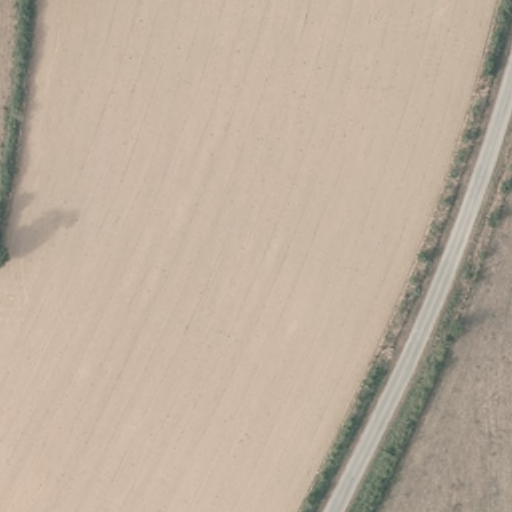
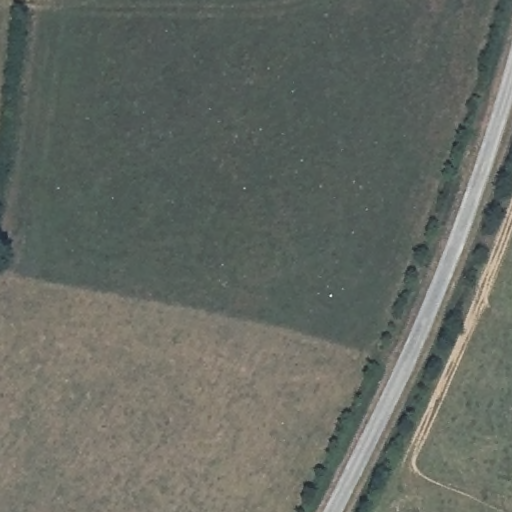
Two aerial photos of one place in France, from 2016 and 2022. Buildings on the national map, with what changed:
[]

